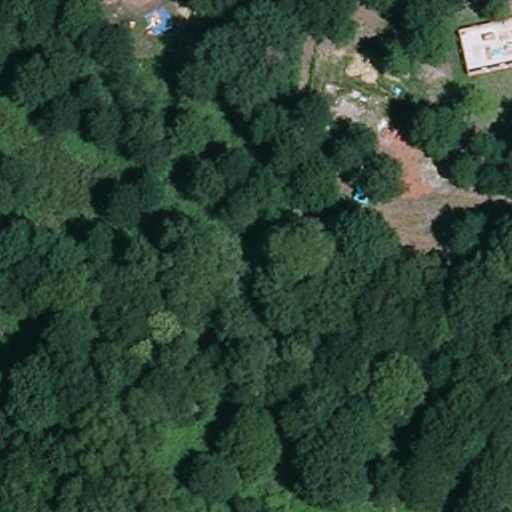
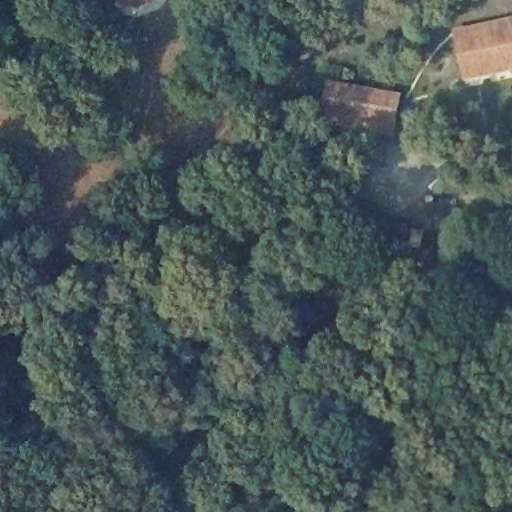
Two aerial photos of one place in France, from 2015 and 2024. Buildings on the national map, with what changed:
unchanged [(131,5),(127,5),(115,0),(139,0),(131,5)]
new [(467,80),(455,29),(512,15),(512,69),(467,80)]
new [(396,137),(355,130),(356,123),(322,116),(328,80),(402,95),(396,137)]

